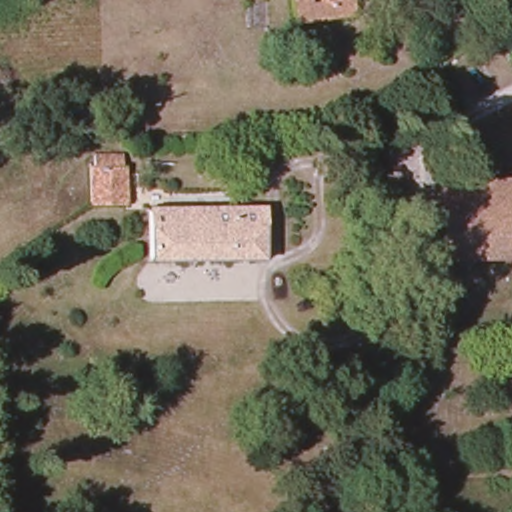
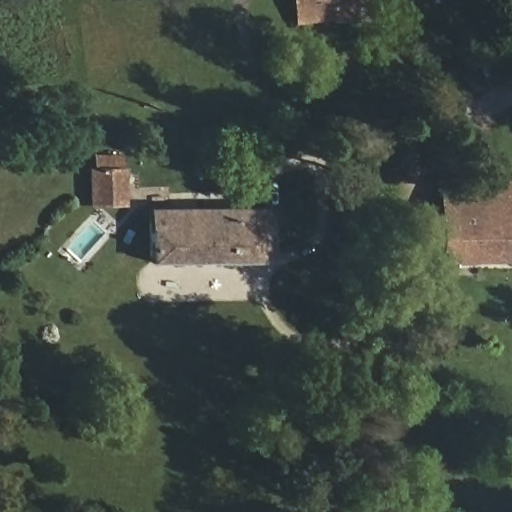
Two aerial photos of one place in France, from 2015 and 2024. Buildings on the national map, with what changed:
unchanged [(293,21),(289,0),(350,0),(353,10),(293,21)]
unchanged [(119,162),(118,217),(89,215),(87,162),(119,162)]
unchanged [(440,267),(435,207),(512,203),(512,263),(440,267)]
unchanged [(149,266),(148,204),(198,204),(199,225),(262,222),(263,263),(149,266)]

